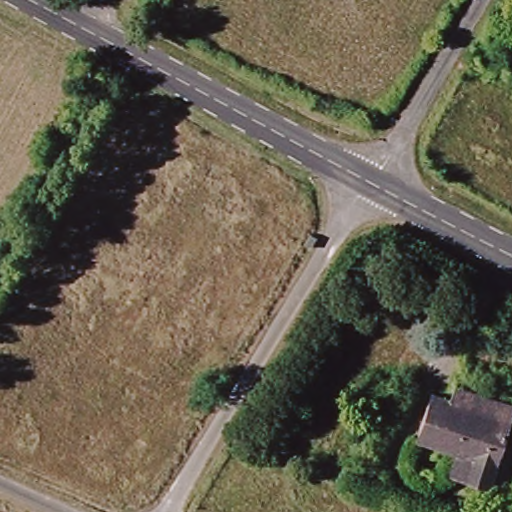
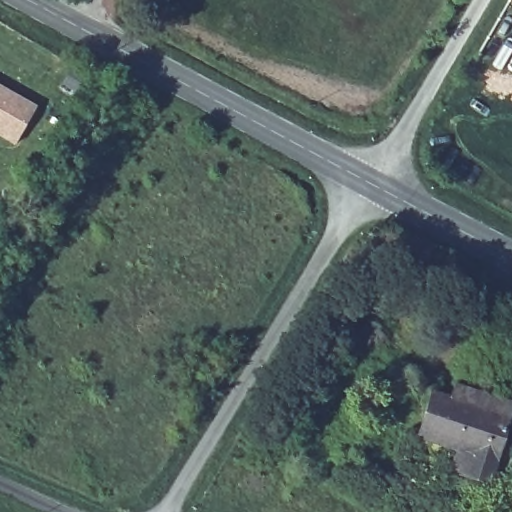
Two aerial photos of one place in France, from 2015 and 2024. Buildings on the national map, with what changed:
new [(14,144),(0,137),(0,86),(36,106),(14,144)]
unchanged [(471,475),(477,456),(423,438),(438,392),(512,417),(512,427),(510,434),(493,482),(471,475)]

